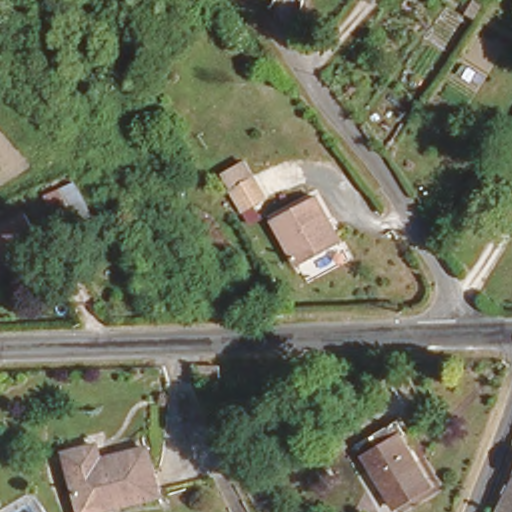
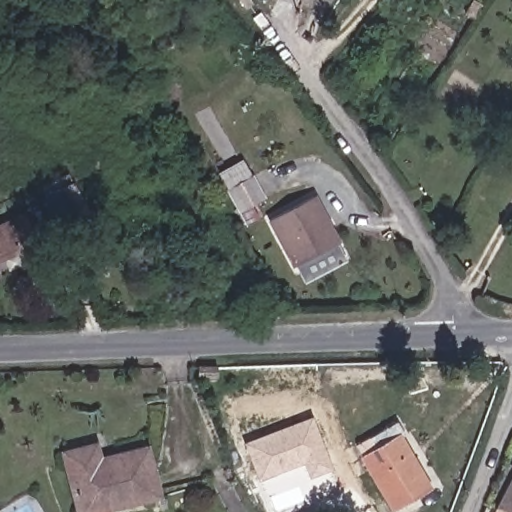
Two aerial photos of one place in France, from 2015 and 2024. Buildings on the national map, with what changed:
unchanged [(236,169),(259,156),(272,179),(249,192),(236,169)]
unchanged [(66,184),(82,215),(66,224),(49,193),(66,184)]
unchanged [(306,193),(332,238),(290,262),(265,216),(306,193)]
unchanged [(30,203),(45,229),(0,252),(0,217),(30,203)]
unchanged [(212,379),(212,369),(231,368),(231,380),(212,379)]
unchanged [(401,427),(391,433),(423,486),(391,506),(356,450),(371,441),(361,425),(390,408),(401,427)]
new [(302,463),(257,481),(242,442),(311,417),(331,469),(309,478),(302,463)]
unchanged [(61,444),(93,435),(97,449),(144,437),(159,486),(78,508),(61,444)]
unchanged [(512,481),(512,507),(501,502),(512,481)]
unchanged [(512,507),(512,512),(496,512),(501,502),(512,507)]

